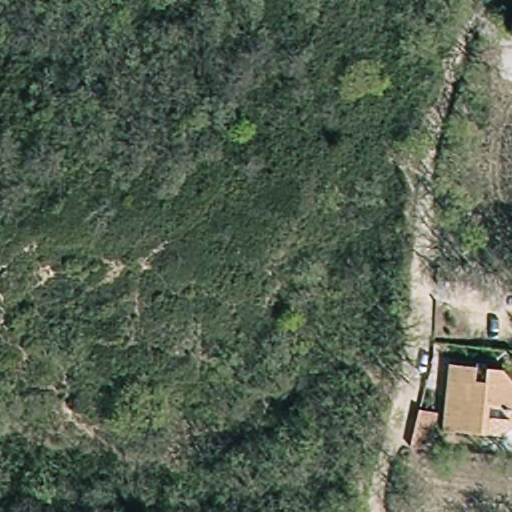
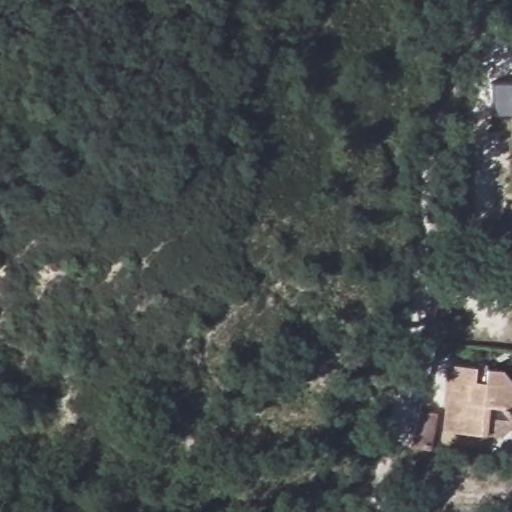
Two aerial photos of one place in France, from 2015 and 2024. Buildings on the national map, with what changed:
new [(512,79),(512,112),(492,111),(494,78),(512,79)]
unchanged [(507,437),(495,436),(454,432),(457,394),(460,394),(463,365),(512,370),(512,413),(509,409),(497,409),(497,420),(512,421),(512,432),(507,437)]
unchanged [(430,409),(447,413),(440,449),(427,448),(420,447),(430,409)]

